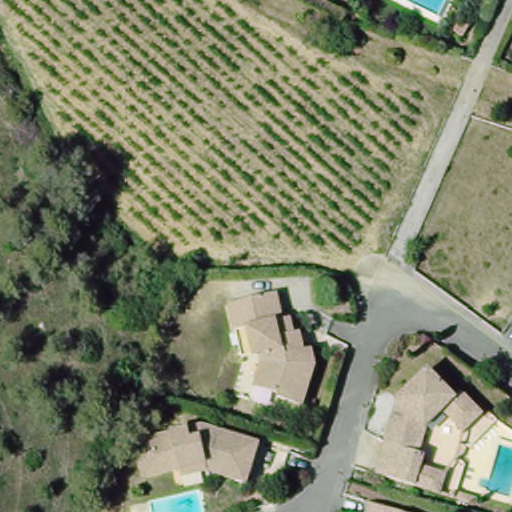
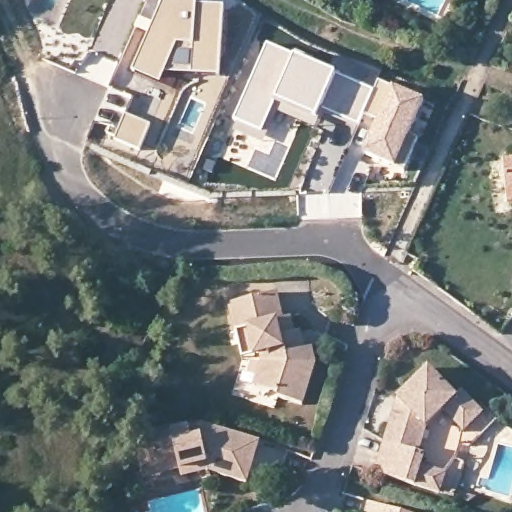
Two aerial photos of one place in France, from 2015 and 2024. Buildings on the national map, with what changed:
new [(224,8),(220,79),(166,75),(162,85),(134,72),(166,0),(198,0),(198,6),(224,8)]
new [(144,0),(147,0),(146,1),(144,0)]
new [(266,41),(374,89),(363,117),(371,121),(367,133),(321,111),(314,126),(274,109),(261,133),(236,122),(229,119),(266,41)]
new [(367,133),(371,121),(363,117),(374,89),(377,79),(425,100),(397,169),(361,153),(367,133)]
new [(123,113),(149,124),(138,150),(112,138),(123,113)]
new [(512,157),(512,203),(508,203),(504,158),(512,157)]
unchanged [(313,361),(299,404),(274,398),(276,394),(252,387),(261,363),(260,354),(239,358),(233,332),(227,303),(274,294),(279,319),(288,317),(291,334),(299,332),(304,349),(309,348),(313,361)]
unchanged [(436,492),(413,484),(374,471),(394,410),(397,399),(429,369),(454,397),(460,393),(482,413),(463,431),(443,411),(426,425),(418,450),(424,453),(419,466),(443,474),(436,492)]
unchanged [(141,480),(137,461),(133,441),(187,429),(201,426),(209,428),(258,444),(244,484),(206,472),(178,479),(177,473),(141,480)]
unchanged [(379,499),(415,512),(375,512),(379,499)]

